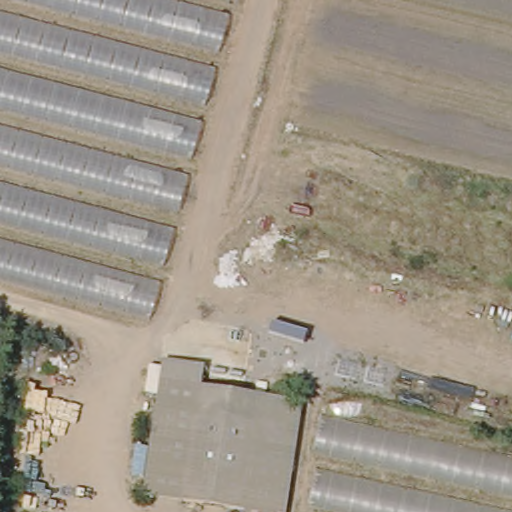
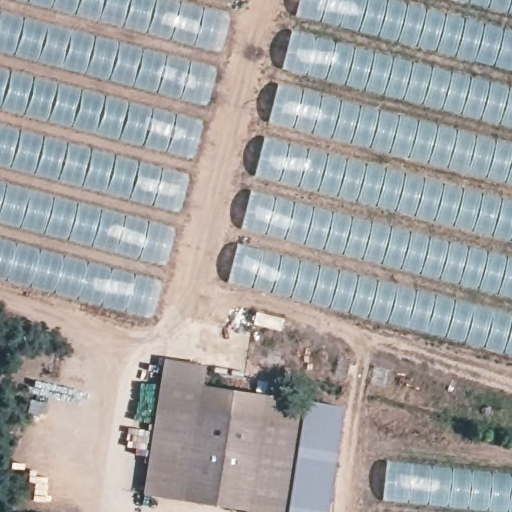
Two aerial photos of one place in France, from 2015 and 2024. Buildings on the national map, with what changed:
unchanged [(0,270),(0,0),(239,0),(157,311),(0,270)]
new [(298,0),(397,0),(512,29),(512,72),(464,60),(295,15),(298,0)]
new [(453,0),(512,0),(512,15),(453,0)]
new [(290,30),(330,39),(512,86),(512,129),(281,69),(290,30)]
new [(277,83),(512,142),(512,186),(433,166),(267,122),(277,83)]
new [(263,137),(378,165),(512,199),(512,243),(254,175),(263,137)]
new [(250,190),(512,256),(512,299),(332,253),(240,228),(250,190)]
new [(237,244),(512,313),(512,354),(227,281),(237,244)]
unchanged [(261,512),(143,494),(163,361),(202,367),(200,385),(300,401),(285,512),(261,512)]
new [(327,512),(285,512),(300,401),(343,408),(327,512)]
demolished [(483,447),(512,452),(512,512),(307,512),(325,418),(483,447)]
new [(512,473),(512,512),(502,512),(417,504),(382,499),(386,460),(512,473)]

